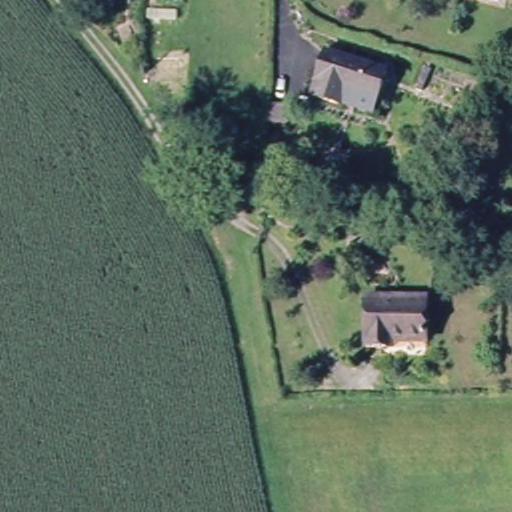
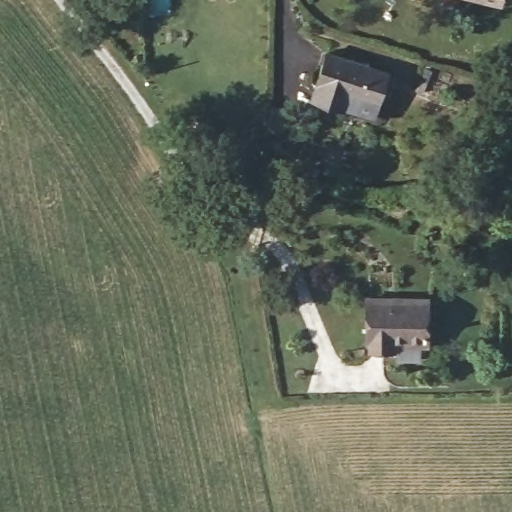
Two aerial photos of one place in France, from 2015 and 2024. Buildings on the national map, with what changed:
unchanged [(473,0),(505,0),(502,9),(473,0)]
unchanged [(313,94),(329,51),(386,70),(370,114),(313,94)]
unchanged [(425,349),(367,350),(367,300),(424,299),(425,349)]

